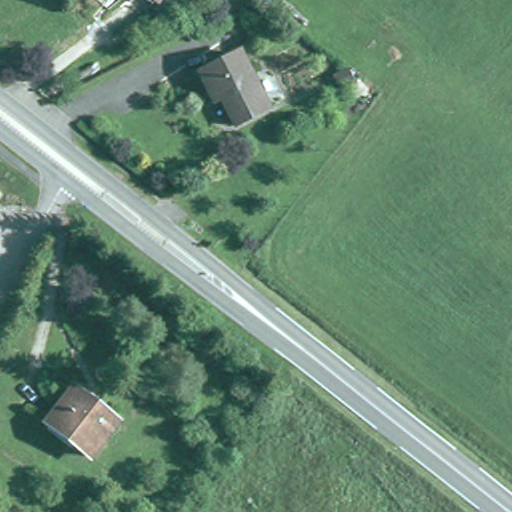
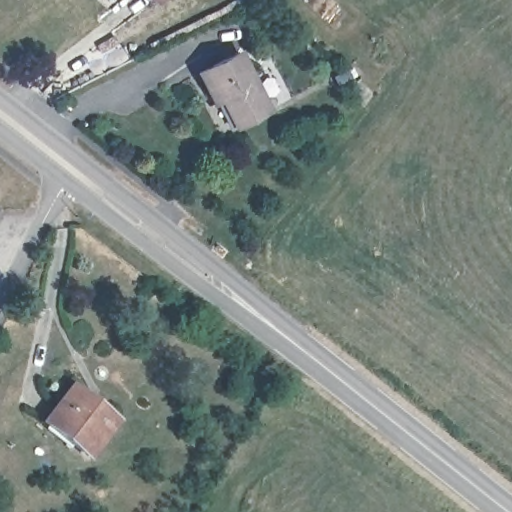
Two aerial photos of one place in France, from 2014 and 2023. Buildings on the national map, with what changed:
unchanged [(161,0),(157,5),(150,0),(161,0)]
unchanged [(236,53),(265,110),(231,128),(217,99),(210,103),(196,74),(236,53)]
unchanged [(46,423),(72,389),(114,421),(88,455),(46,423)]

